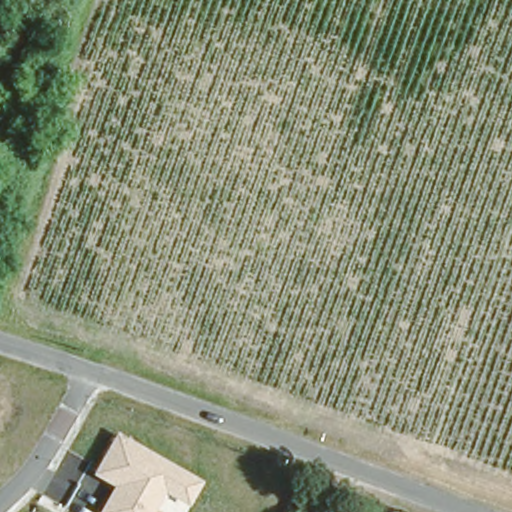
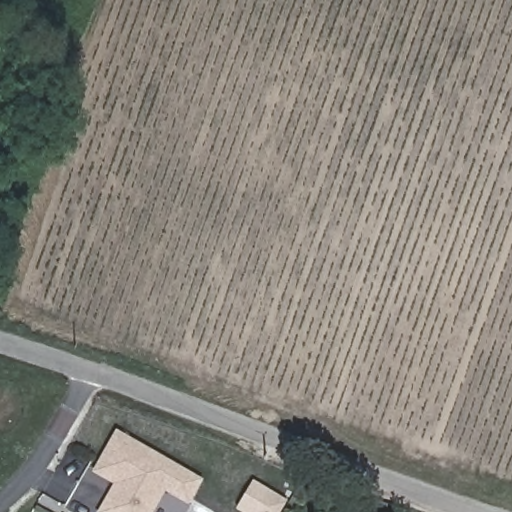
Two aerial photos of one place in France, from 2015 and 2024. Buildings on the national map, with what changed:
unchanged [(166,487),(151,512),(102,512),(119,484),(98,471),(118,436),(199,481),(189,501),(166,487)]
new [(252,481),(287,502),(280,512),(238,512),(235,510),(252,481)]

